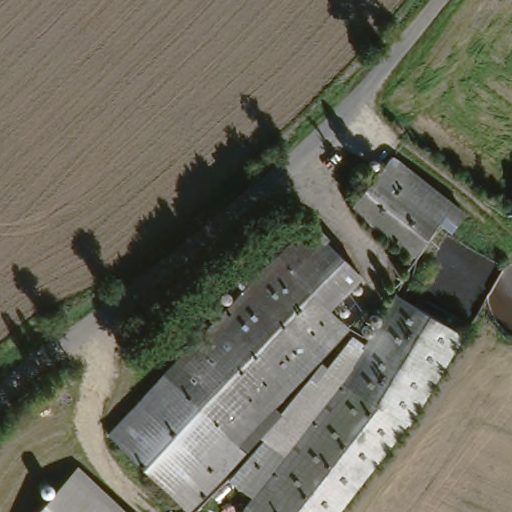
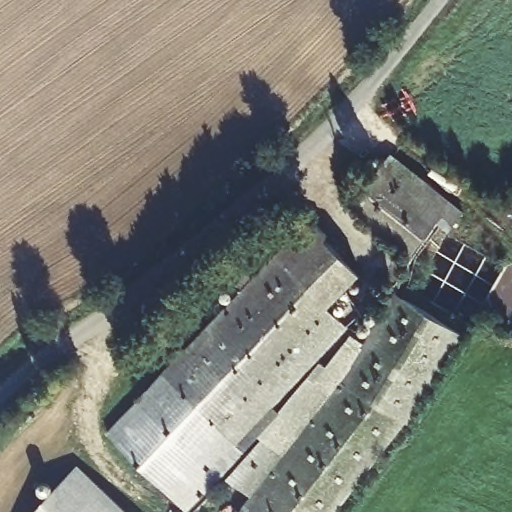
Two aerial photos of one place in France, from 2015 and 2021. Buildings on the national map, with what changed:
unchanged [(463,217),(448,236),(433,225),(373,178),(390,158),(463,217)]
unchanged [(433,225),(406,260),(348,213),(373,178),(433,225)]
unchanged [(408,424),(338,512),(238,512),(245,503),(229,482),(214,489),(135,405),(308,225),(364,279),(335,312),(356,336),(382,302),(433,316),(459,337),(408,424)]
unchanged [(193,512),(178,512),(102,438),(135,405),(214,489),(193,512)]
unchanged [(78,465),(128,512),(36,512),(78,465)]

